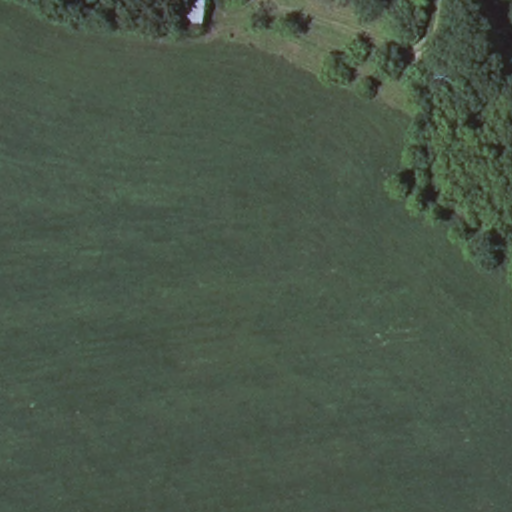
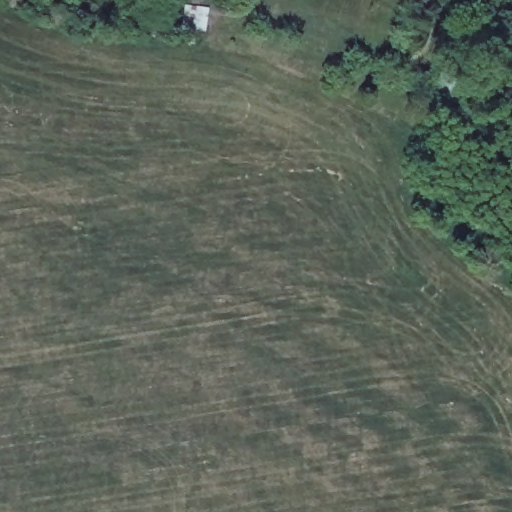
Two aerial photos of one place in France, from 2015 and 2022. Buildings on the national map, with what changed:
unchanged [(211,7),(207,32),(189,30),(192,5),(211,7)]
unchanged [(441,70),(471,84),(462,105),(432,91),(441,70)]

